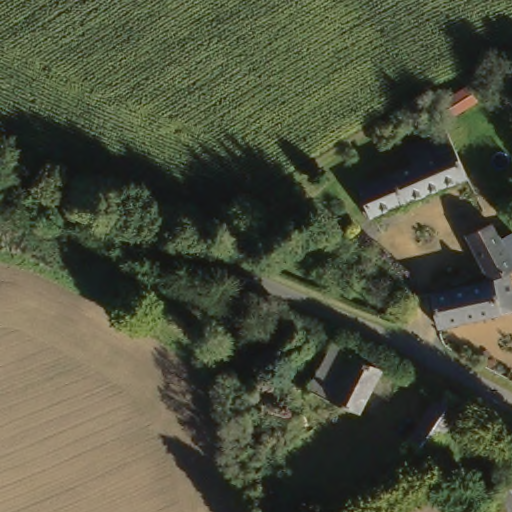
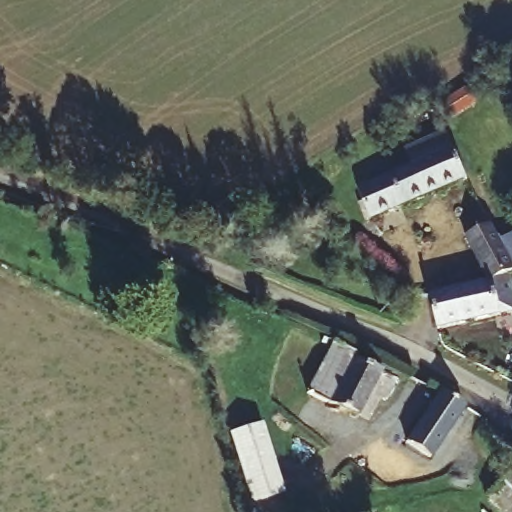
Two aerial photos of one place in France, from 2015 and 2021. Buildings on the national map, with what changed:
unchanged [(405,166),(399,151),(411,145),(440,133),(448,147),(468,184),(371,222),(354,188),(405,166)]
unchanged [(511,284),(512,289),(512,315),(440,332),(432,300),(483,287),(461,239),(491,228),(500,246),(512,240),(512,283),(511,284)]
unchanged [(324,343),(346,353),(326,398),(302,386),(324,343)]
unchanged [(346,353),(376,370),(355,413),(326,398),(346,353)]
unchanged [(409,443),(431,399),(456,410),(434,458),(425,452),(409,443)]
demolished [(231,422),(264,416),(283,483),(249,491),(231,422)]
unchanged [(503,512),(488,495),(512,466),(512,512),(503,512)]

